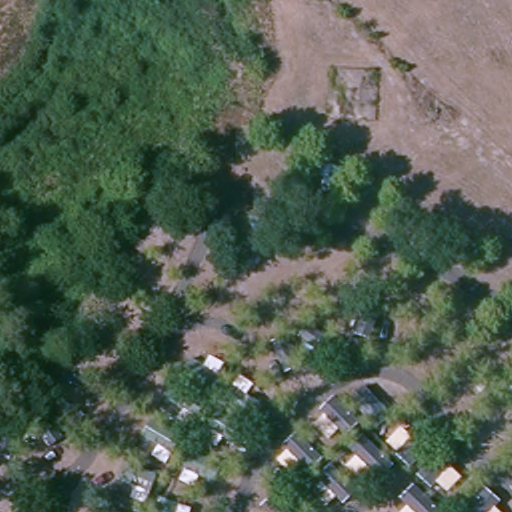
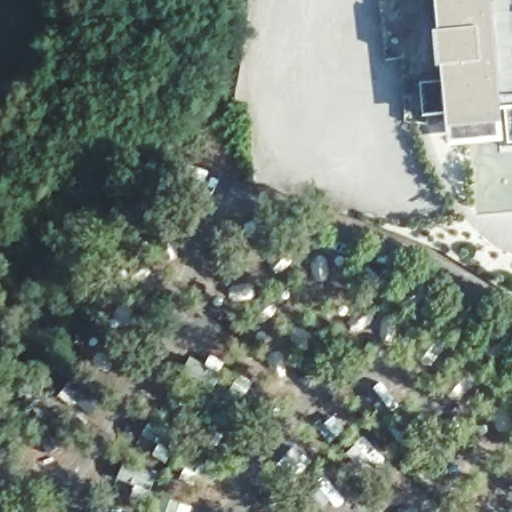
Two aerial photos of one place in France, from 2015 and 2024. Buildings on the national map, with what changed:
new [(498,109),(501,124),(503,142),(447,148),(445,130),(444,115),(422,116),(419,85),(440,83),(439,68),(434,69),(432,34),(437,33),(434,0),(486,0),(496,109),(498,109)]
new [(506,108),(496,109),(486,0),(512,0),(512,144),(510,144),(506,108)]

